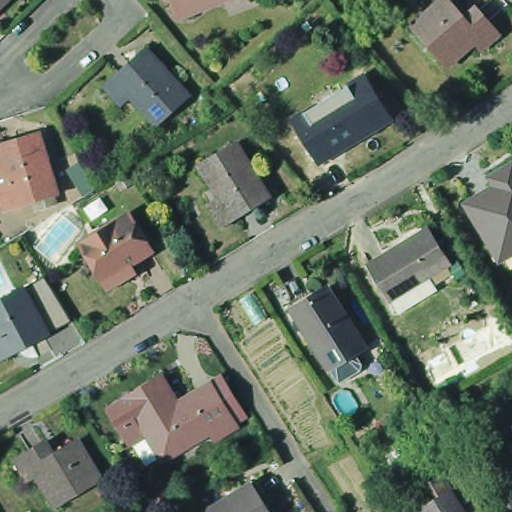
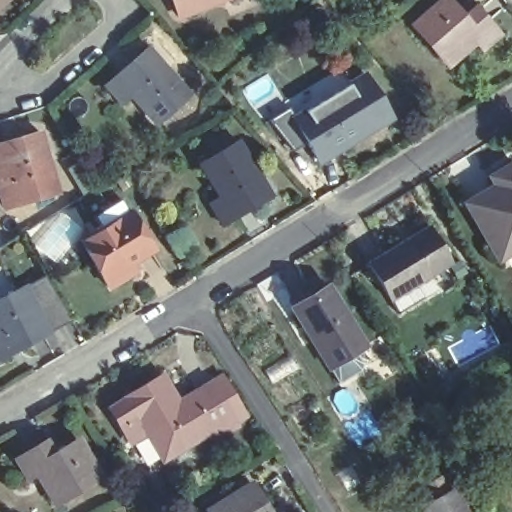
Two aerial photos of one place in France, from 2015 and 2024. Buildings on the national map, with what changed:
unchanged [(23,0),(0,22),(0,0),(23,0)]
unchanged [(172,0),(231,0),(180,20),(172,0)]
unchanged [(483,0),(511,33),(458,80),(412,29),(445,0),(483,0)]
unchanged [(113,91),(122,82),(153,54),(165,66),(166,64),(173,71),(170,73),(195,99),(162,128),(136,100),(128,108),(113,91)]
unchanged [(337,161),(323,170),(298,129),(312,121),(370,86),(395,126),(377,138),(376,137),(336,161),(337,161)]
unchanged [(0,209),(0,148),(34,138),(51,197),(11,209),(1,213),(0,209)]
unchanged [(207,211),(216,206),(197,173),(234,150),(266,203),(230,225),(220,232),(207,211)]
unchanged [(470,204),(499,186),(494,177),(512,166),(512,255),(505,260),(498,250),(470,204)]
unchanged [(126,273),(130,281),(110,293),(103,282),(82,246),(130,217),(153,255),(132,268),(126,273)]
unchanged [(403,315),(395,301),(372,265),(409,243),(417,237),(437,225),(457,258),(435,271),(437,275),(434,277),(443,291),(403,315)]
unchanged [(357,371),(335,385),(325,369),(287,310),(284,305),(305,292),(308,296),(323,287),(360,346),(350,353),(357,364),(357,371)]
unchanged [(54,337),(0,365),(0,308),(30,292),(54,337)]
unchanged [(127,426),(115,407),(169,375),(186,403),(205,392),(203,390),(217,382),(242,423),(228,432),(221,436),(217,430),(170,458),(145,416),(136,420),(145,434),(135,440),(127,426)]
unchanged [(48,444),(55,457),(80,443),(102,480),(57,507),(39,475),(31,481),(15,464),(29,456),(48,444)]
unchanged [(428,507),(420,494),(412,480),(435,466),(443,480),(463,512),(420,512),(428,507)]
unchanged [(252,487),(267,512),(212,512),(252,487)]
unchanged [(512,500),(512,503),(500,510),(495,501),(508,494),(512,500)]

